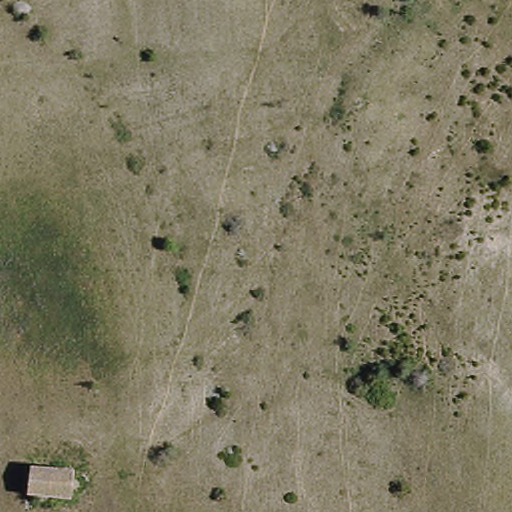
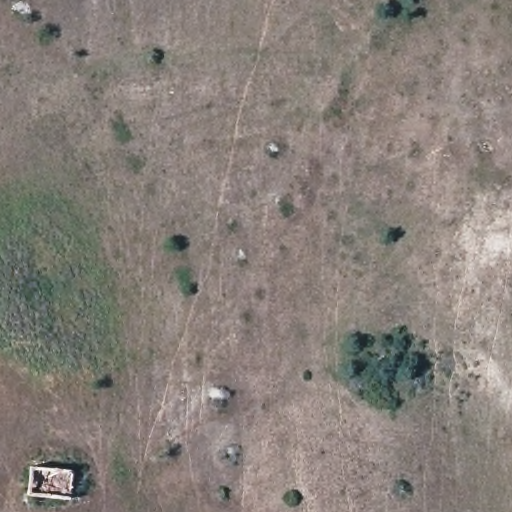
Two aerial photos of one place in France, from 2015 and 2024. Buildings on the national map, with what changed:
unchanged [(23,456),(92,477),(74,510),(12,494),(23,456)]

